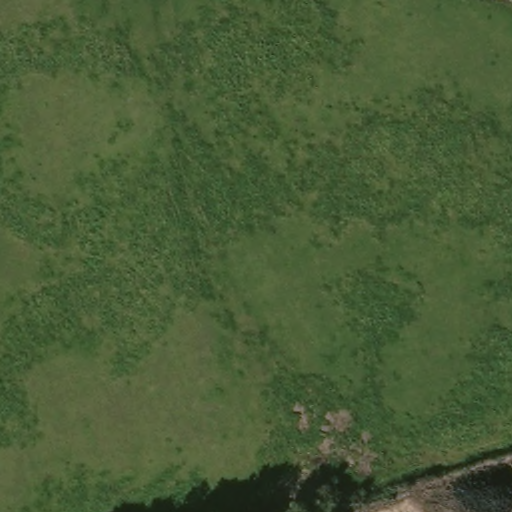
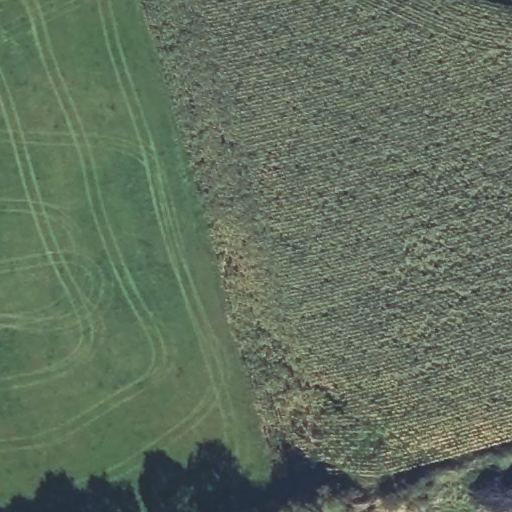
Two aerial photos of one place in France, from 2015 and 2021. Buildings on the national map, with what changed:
[]

